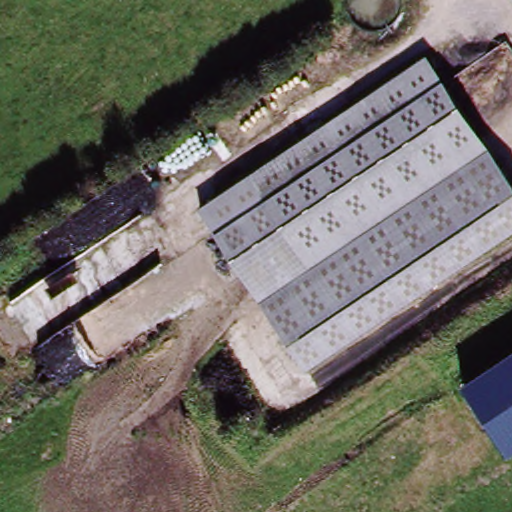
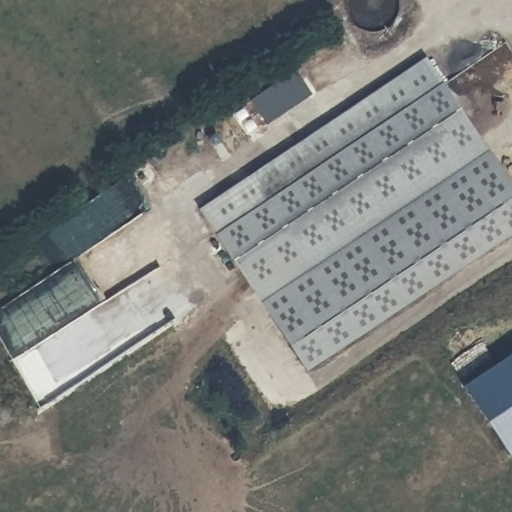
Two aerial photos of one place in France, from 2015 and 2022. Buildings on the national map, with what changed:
unchanged [(205,230),(423,64),(482,141),(263,305),(205,230)]
unchanged [(512,187),(512,234),(303,371),(263,305),(474,147),(482,141),(512,187)]
unchanged [(512,353),(512,456),(511,456),(464,385),(512,353)]

